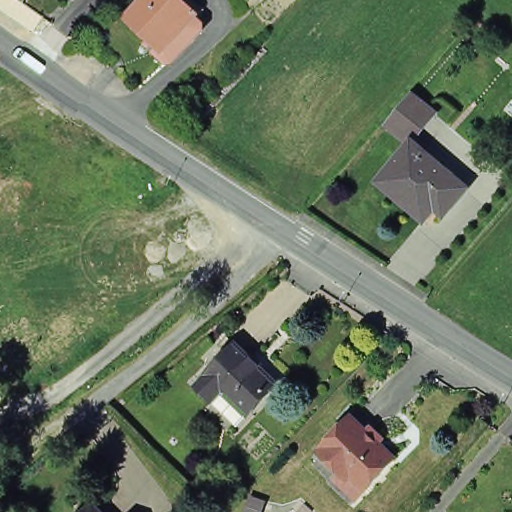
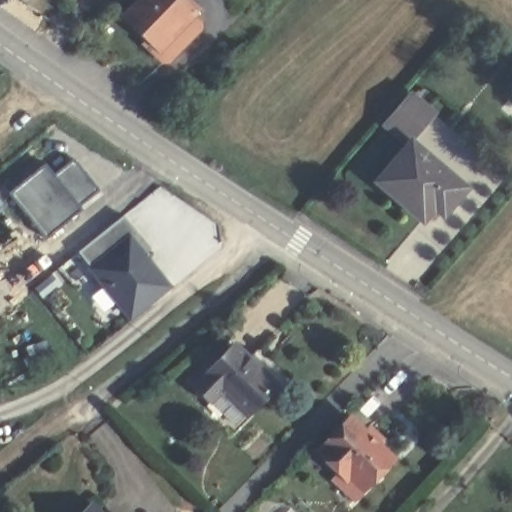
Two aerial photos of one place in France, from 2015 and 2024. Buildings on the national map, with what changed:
unchanged [(152,37),(128,14),(142,0),(181,0),(197,16),(170,45),(166,49),(152,37)]
unchanged [(407,98),(427,115),(403,143),(383,125),(407,98)]
unchanged [(406,145),(458,190),(436,216),(427,208),(417,220),(373,183),(406,145)]
new [(100,192),(44,239),(11,194),(46,162),(54,174),(73,157),(100,192)]
new [(137,233),(151,249),(143,255),(168,286),(130,316),(77,252),(123,215),(137,233)]
unchanged [(203,384),(243,343),(281,381),(252,411),(242,421),(218,398),(203,384)]
unchanged [(332,477),(338,470),(315,447),(348,414),(390,455),(361,485),(352,496),(332,477)]
demolished [(266,504),(264,512),(250,512),(255,500),(266,504)]
unchanged [(94,512),(81,512),(87,505),(94,512)]

